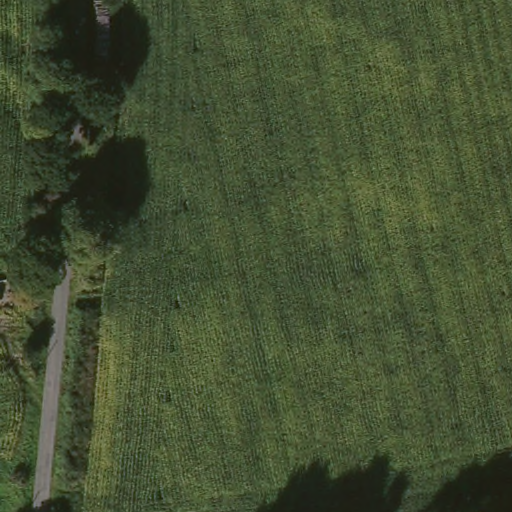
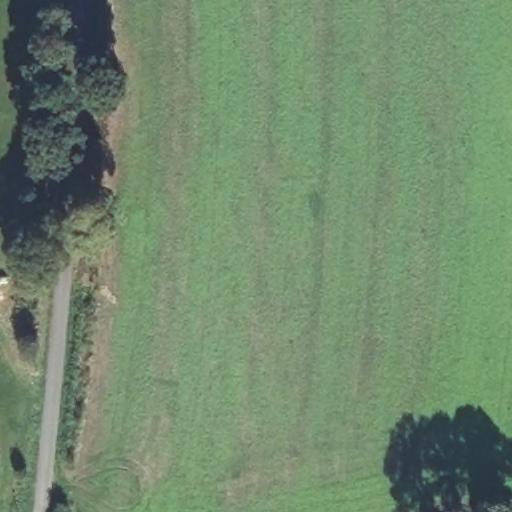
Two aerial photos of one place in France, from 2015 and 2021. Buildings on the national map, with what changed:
unchanged [(0,305),(0,280),(12,279),(15,303),(0,305)]

